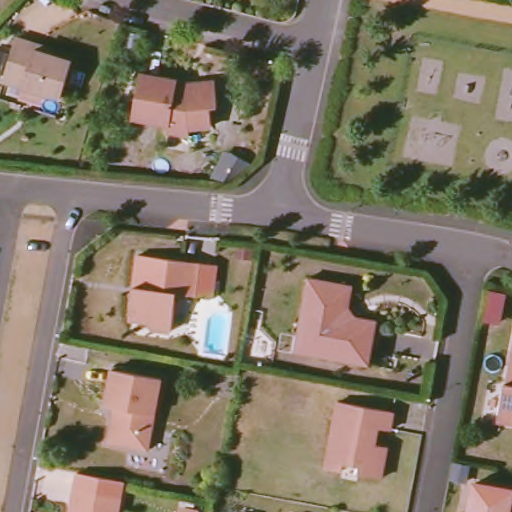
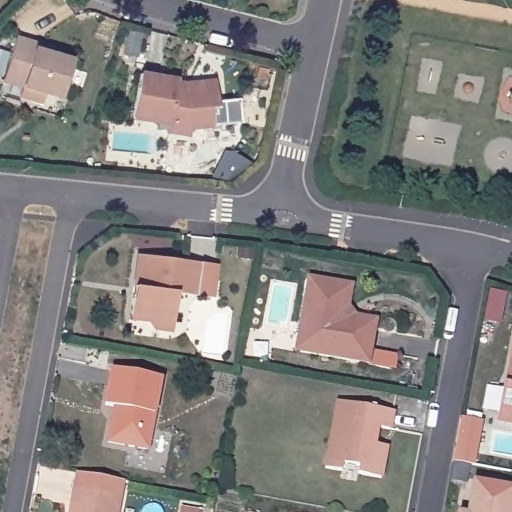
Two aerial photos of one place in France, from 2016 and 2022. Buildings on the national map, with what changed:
unchanged [(61,96),(3,78),(15,34),(38,40),(51,45),(50,50),(73,57),(61,96)]
unchanged [(176,82),(177,90),(192,90),(193,84),(217,84),(217,108),(211,108),(212,127),(190,128),(185,137),(166,133),(165,126),(134,119),(142,75),(176,82)]
unchanged [(202,266),(198,299),(175,296),(170,334),(150,332),(145,323),(130,321),(140,257),(202,266)]
unchanged [(308,277),(345,284),(353,286),(348,313),(376,318),(375,326),(367,365),(317,355),(295,350),(297,337),(308,277)]
unchanged [(505,379),(508,380),(512,364),(512,421),(497,418),(505,379)]
unchanged [(161,380),(148,450),(110,443),(115,408),(106,406),(112,370),(161,380)]
unchanged [(388,457),(383,482),(360,477),(361,470),(345,467),(344,473),(328,469),(340,405),(396,417),(393,433),(380,430),(376,445),(390,447),(388,457)]
unchanged [(471,458),(469,473),(455,470),(457,456),(471,458)]
unchanged [(512,503),(510,512),(472,512),(479,481),(512,488),(512,503)]
unchanged [(120,512),(72,512),(76,493),(122,502),(120,512)]
unchanged [(468,512),(463,512),(463,511),(468,512)]

